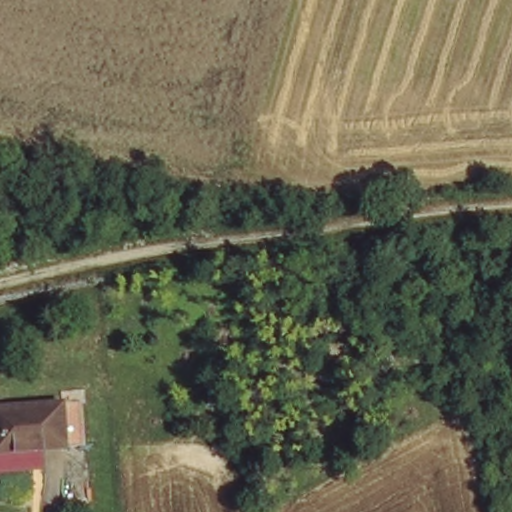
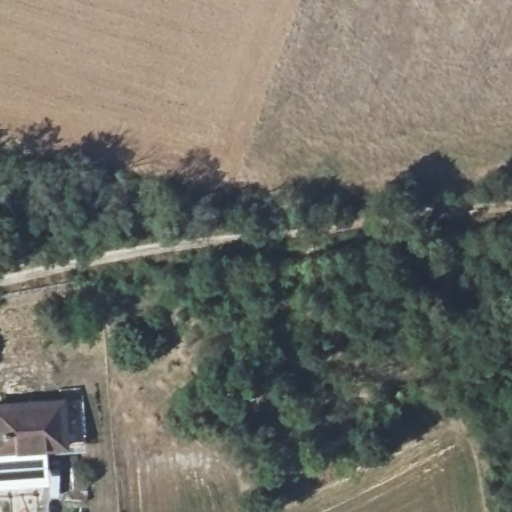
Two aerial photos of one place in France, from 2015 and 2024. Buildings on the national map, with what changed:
unchanged [(74,448),(0,452),(0,411),(75,407),(74,448)]

